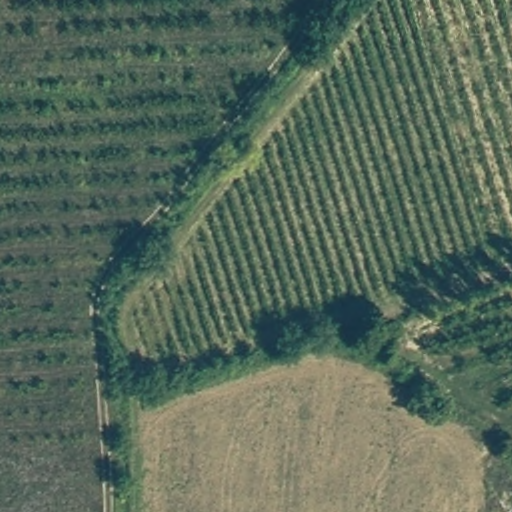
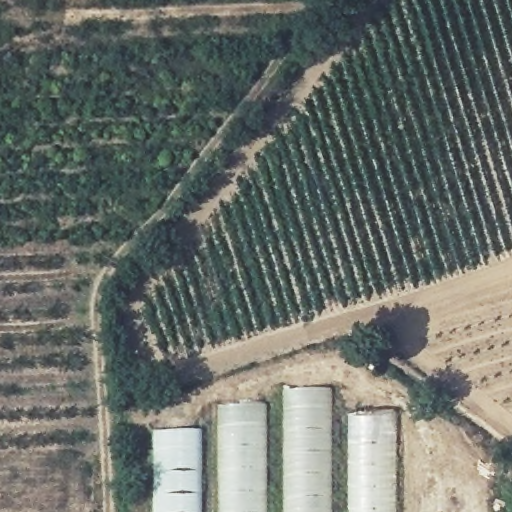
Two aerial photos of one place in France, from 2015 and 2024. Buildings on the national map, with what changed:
new [(331,389),(331,512),(282,512),(282,390),(331,389)]
new [(265,405),(266,512),(219,512),(218,406),(265,405)]
new [(396,410),(396,512),(349,512),(348,410),(396,410)]
new [(201,430),(201,512),(154,512),(153,431),(201,430)]

